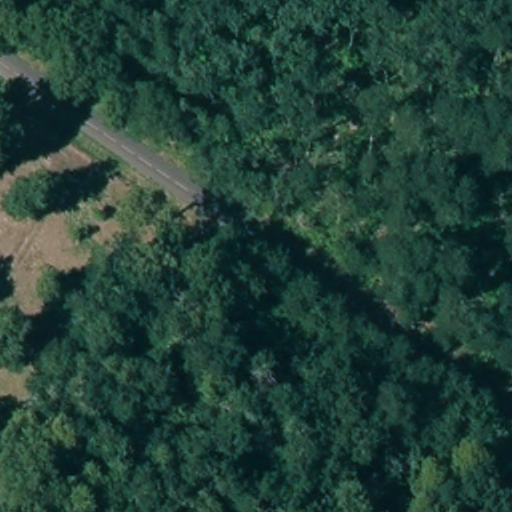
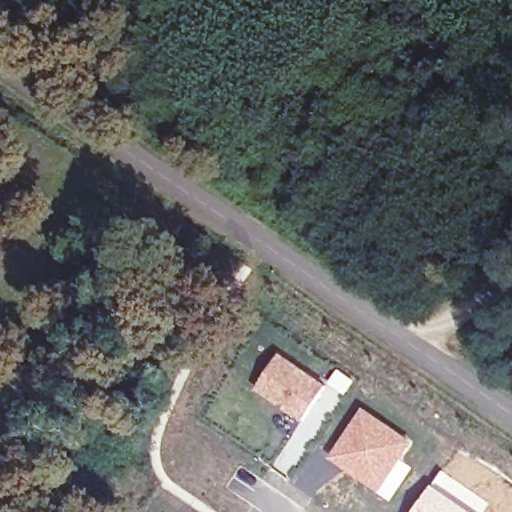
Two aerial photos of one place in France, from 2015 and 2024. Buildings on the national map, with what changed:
new [(255,390),(280,353),(324,385),(300,421),(255,390)]
new [(363,406),(414,441),(402,459),(412,467),(388,502),(327,458),(363,406)]
new [(488,503),(483,512),(411,512),(430,484),(440,469),(488,503)]

